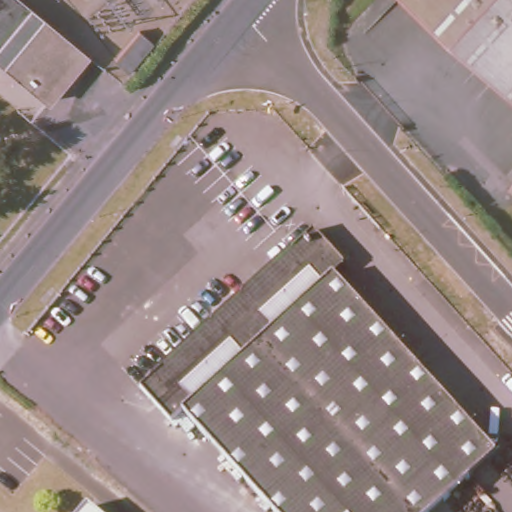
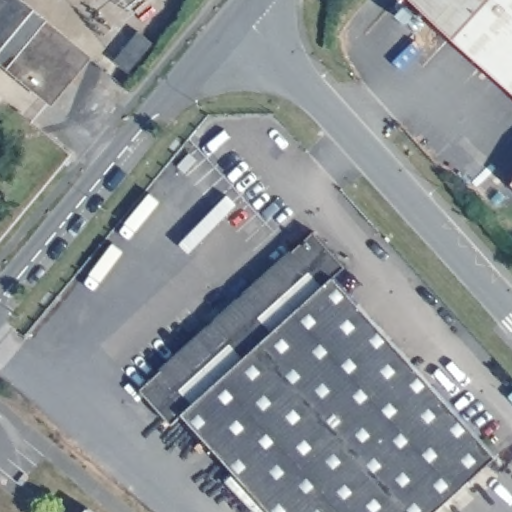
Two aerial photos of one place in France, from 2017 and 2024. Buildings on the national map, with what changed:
unchanged [(0,57),(0,0),(23,0),(86,54),(48,98),(0,57)]
unchanged [(512,0),(512,88),(417,0),(512,0)]
unchanged [(134,74),(120,62),(144,34),(158,45),(134,74)]
unchanged [(512,176),(512,182),(509,180),(512,176)]
unchanged [(337,275),(497,452),(431,512),(273,512),(181,412),(171,421),(139,386),(316,226),(349,265),(337,275)]
unchanged [(90,504),(100,512),(83,512),(90,504)]

